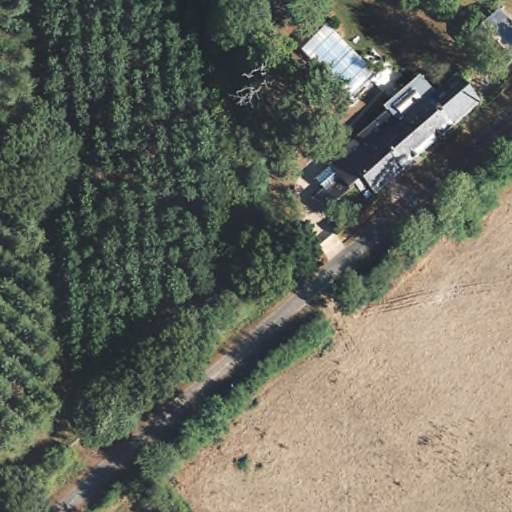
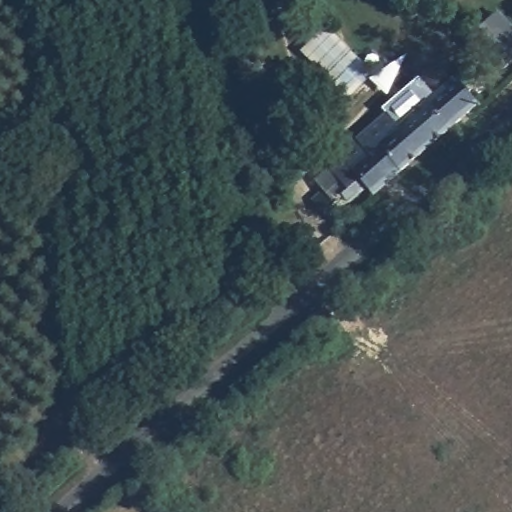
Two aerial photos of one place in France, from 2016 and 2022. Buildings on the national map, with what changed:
unchanged [(512,55),(512,61),(506,65),(472,29),(483,21),(512,55)]
unchanged [(390,104),(413,84),(428,101),(453,80),(472,101),(474,105),(444,130),(425,146),(402,119),(390,104)]
unchanged [(402,119),(425,146),(369,194),(359,183),(321,215),(312,203),(348,172),(335,156),(382,117),(378,114),(390,104),(402,119)]

